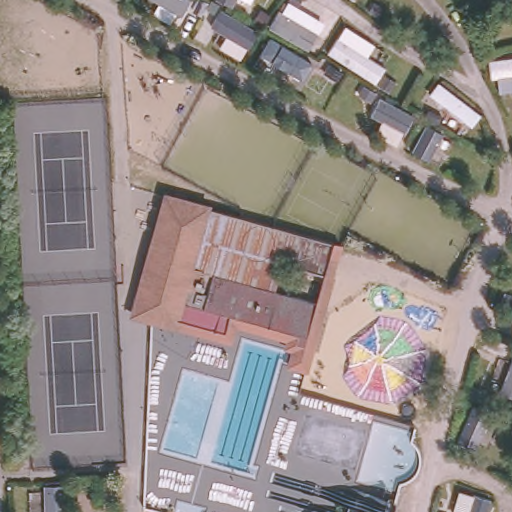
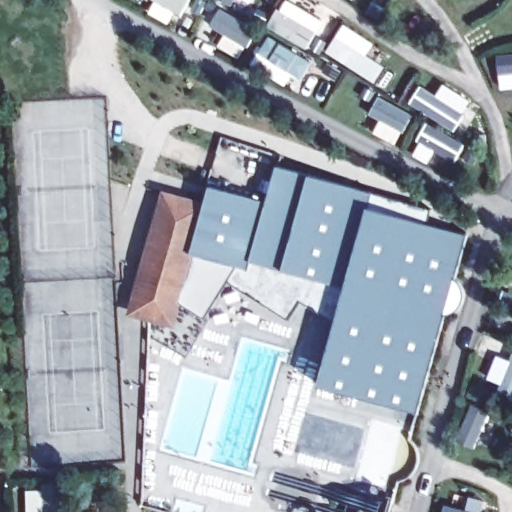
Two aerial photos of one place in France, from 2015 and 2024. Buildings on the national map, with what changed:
new [(206,203),(210,186),(267,201),(277,166),(432,210),(429,222),(467,233),(456,278),(464,288),(465,296),(461,305),(455,311),(445,315),(418,412),(320,384),(337,322),(301,299),(288,317),(229,280),(203,317),(181,303),(175,326),(127,314),(162,190),(206,203)]
demolished [(272,292),(321,306),(306,369),(296,366),(292,361),(292,354),(298,332),(255,319),(248,315),(225,309),(217,334),(198,328),(199,325),(135,305),(169,189),(206,200),(188,267),(213,275),(262,289),(272,292)]
demolished [(337,512),(329,509),(354,428),(383,437),(358,512),(337,512)]

